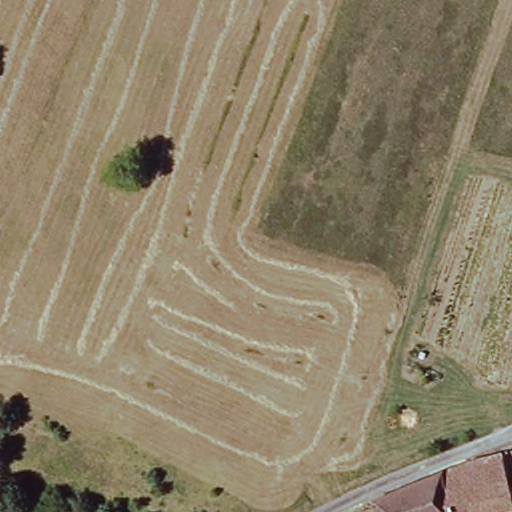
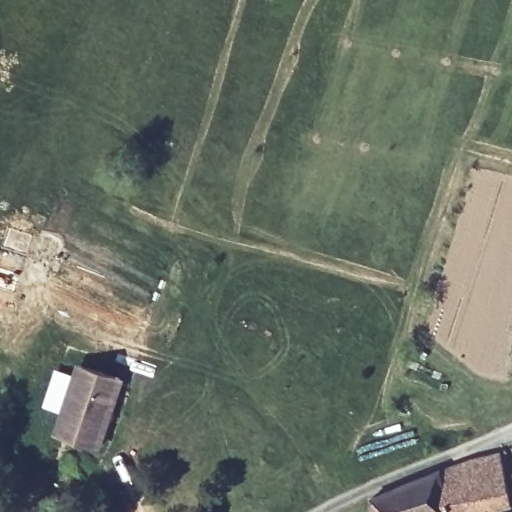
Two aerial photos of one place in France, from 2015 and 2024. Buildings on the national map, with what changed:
new [(75,362),(124,379),(101,449),(53,433),(75,362)]
unchanged [(478,463),(502,461),(511,512),(372,512),(371,508),(478,463)]

